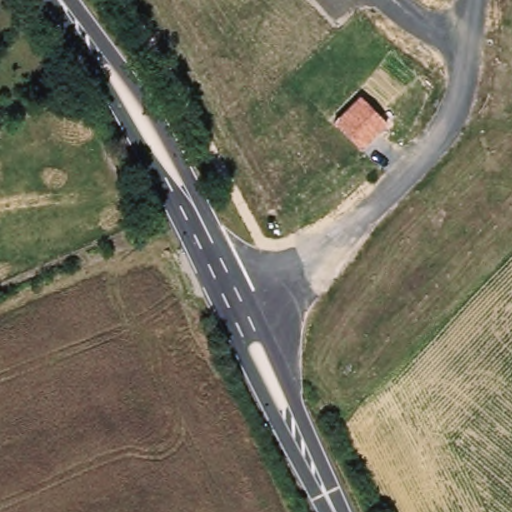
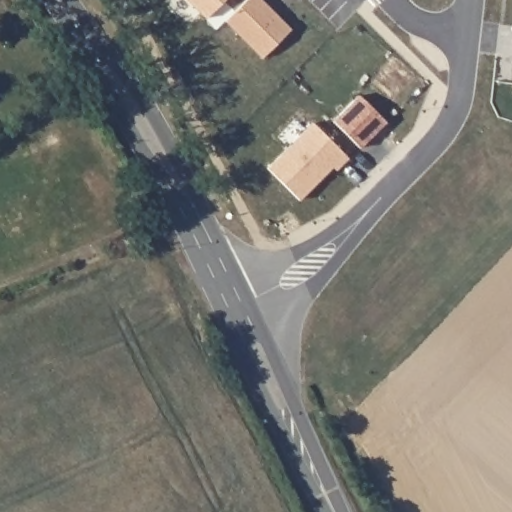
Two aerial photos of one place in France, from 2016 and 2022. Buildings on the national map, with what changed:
new [(292,29),(264,58),(226,21),(247,0),(264,0),(292,29)]
unchanged [(334,122),(361,96),(388,125),(361,150),(334,122)]
new [(350,158),(338,172),(333,167),(301,200),(270,169),(312,124),(350,158)]

